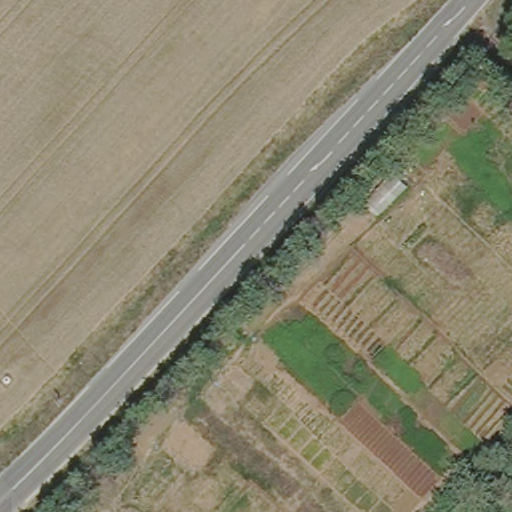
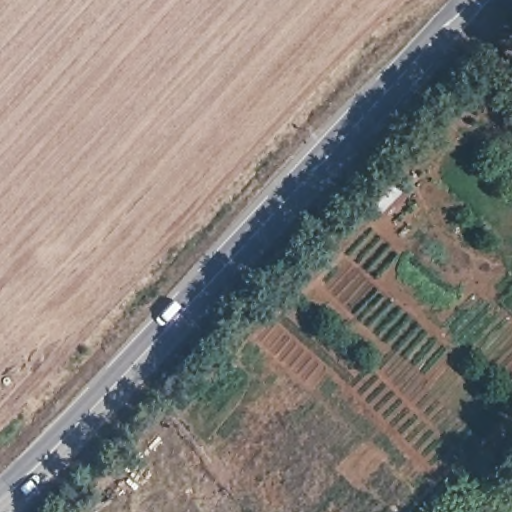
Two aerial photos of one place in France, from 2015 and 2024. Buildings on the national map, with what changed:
[]

